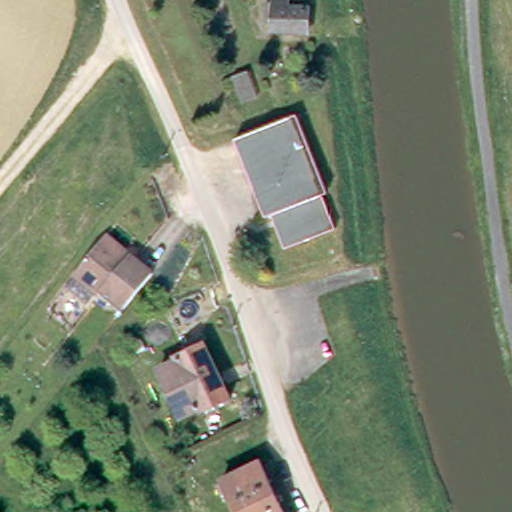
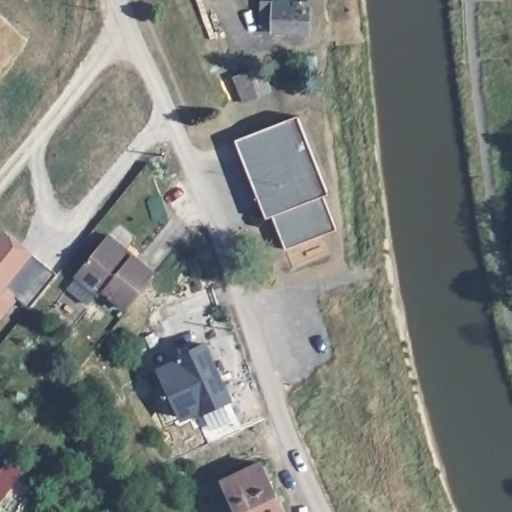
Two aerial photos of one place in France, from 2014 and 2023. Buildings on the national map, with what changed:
unchanged [(289,1),(312,2),(312,29),(275,27),(275,19),(267,19),(267,0),(289,0),(289,1)]
unchanged [(252,71),(260,99),(242,104),(234,77),(252,71)]
unchanged [(270,213),(267,211),(266,209),(237,135),(300,111),(332,186),(325,191),(339,224),(286,245),(277,222),(272,211),(270,213)]
new [(27,251),(53,273),(25,307),(12,297),(0,313),(0,230),(17,245),(27,251)]
unchanged [(130,305),(107,286),(90,298),(70,282),(107,235),(112,230),(139,252),(159,268),(130,305)]
unchanged [(232,388),(197,404),(195,400),(180,408),(158,361),(175,353),(172,347),(204,333),(232,388)]
unchanged [(220,471),(258,453),(287,512),(233,512),(238,508),(220,471)]

